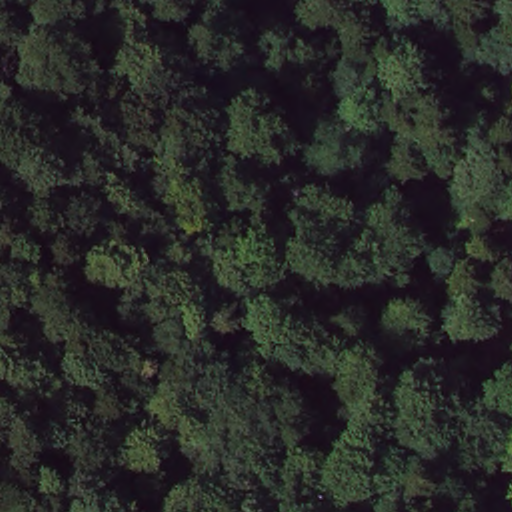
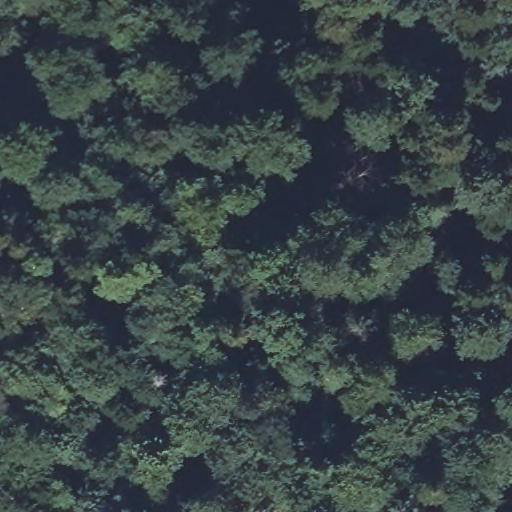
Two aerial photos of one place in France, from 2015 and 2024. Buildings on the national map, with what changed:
[]

